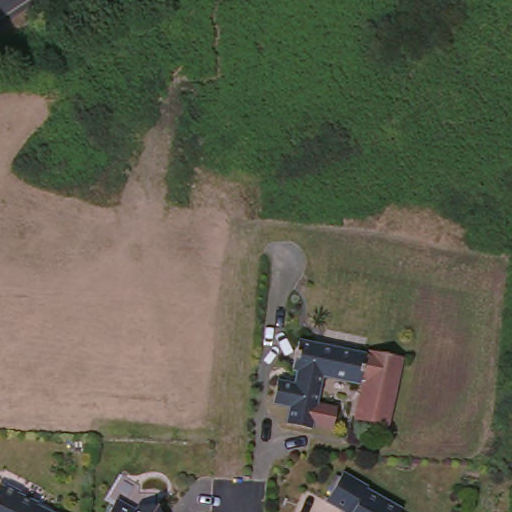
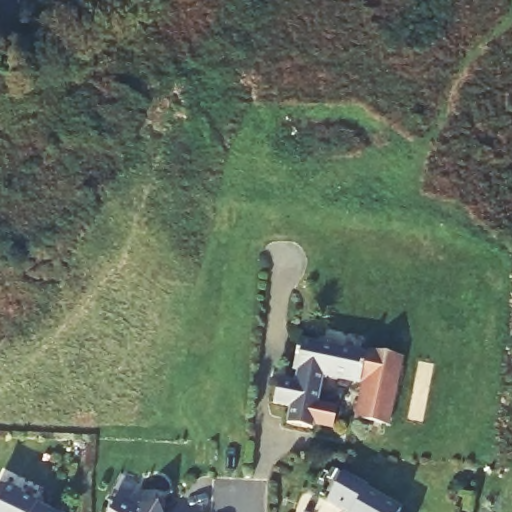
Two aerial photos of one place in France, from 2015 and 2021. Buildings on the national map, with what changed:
unchanged [(366,355),(367,349),(398,354),(400,354),(399,363),(388,424),(356,418),(361,383),(322,377),(317,404),(337,407),(333,429),(314,425),(313,430),(287,425),(289,410),(272,406),(276,383),(293,386),(294,373),(290,371),(295,346),(296,343),(307,345),(366,355)]
unchanged [(368,485),(402,505),(399,511),(400,512),(352,512),(354,510),(328,496),(345,467),(369,482),(368,485)]
unchanged [(2,485),(7,482),(18,488),(20,493),(36,501),(35,502),(55,512),(0,512),(0,484),(2,485)]
unchanged [(117,500),(136,512),(140,506),(158,505),(161,512),(110,512),(117,500)]

